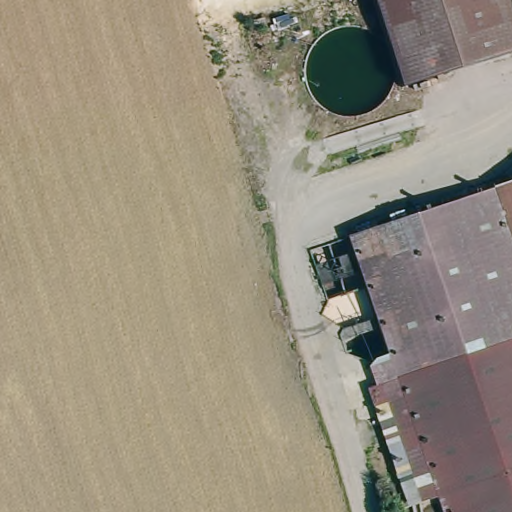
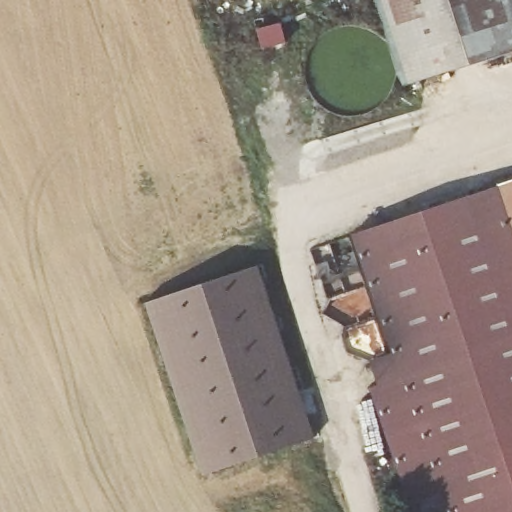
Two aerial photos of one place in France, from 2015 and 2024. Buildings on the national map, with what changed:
unchanged [(382,0),(512,0),(512,51),(409,84),(382,0)]
unchanged [(415,506),(366,362),(393,352),(353,229),(512,178),(512,512),(448,512),(443,497),(415,506)]
new [(256,267),(312,438),(200,474),(144,303),(256,267)]

